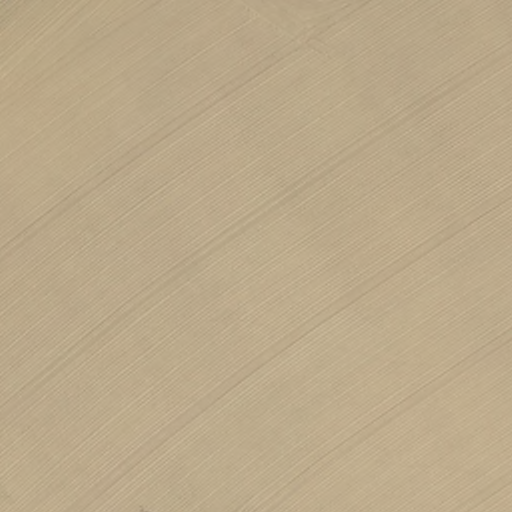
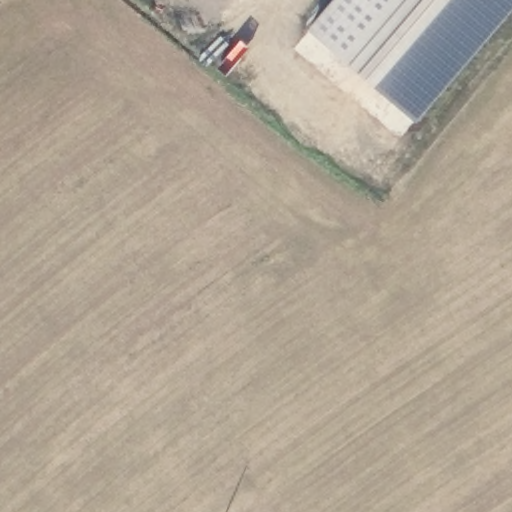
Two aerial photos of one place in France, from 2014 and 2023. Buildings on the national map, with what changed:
new [(512,0),(512,12),(417,122),(308,30),(334,0),(512,0)]

